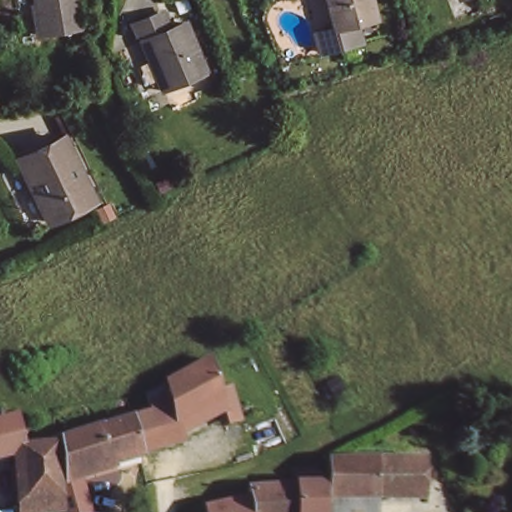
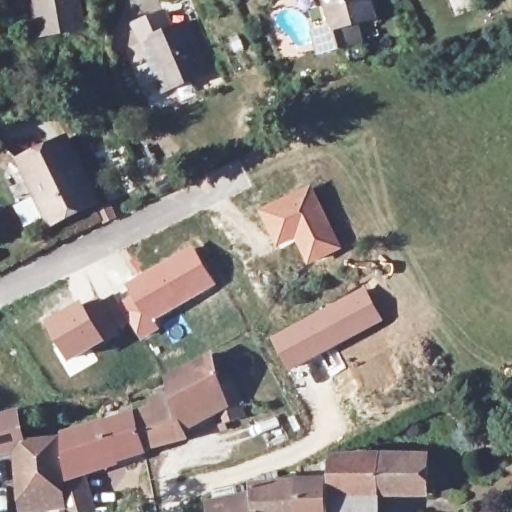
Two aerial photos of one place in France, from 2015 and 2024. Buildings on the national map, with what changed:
unchanged [(87,25),(48,34),(39,0),(81,0),(87,25)]
unchanged [(324,55),(319,37),(334,33),(325,0),(368,0),(373,21),(359,25),(364,42),(324,55)]
unchanged [(128,24),(156,12),(164,28),(180,23),(199,72),(160,88),(146,55),(141,56),(128,24)]
unchanged [(50,221),(24,159),(70,135),(96,197),(50,221)]
new [(312,185),(344,248),(309,265),(296,240),(278,248),(260,210),(312,185)]
new [(130,294),(125,286),(191,241),(217,284),(156,320),(161,328),(141,340),(118,301),(130,294)]
new [(312,316),(364,284),(384,320),(329,350),(289,369),(273,336),(312,316)]
new [(85,301),(90,309),(104,300),(123,329),(70,362),(46,322),(85,301)]
unchanged [(151,419),(148,404),(174,397),(173,384),(208,362),(216,388),(226,385),(233,412),(218,417),(214,405),(176,416),(179,437),(129,454),(121,427),(151,419)]
unchanged [(18,490),(25,488),(11,440),(0,443),(0,409),(15,405),(24,433),(50,438),(51,446),(59,505),(60,512),(21,512),(20,507),(18,490)]
unchanged [(129,454),(130,458),(70,477),(61,444),(121,427),(129,454)]
unchanged [(336,495),(333,476),(331,456),(422,444),(424,480),(373,485),(375,512),(338,512),(338,508),(336,495)]
unchanged [(251,489),(249,481),(269,480),(301,478),(323,477),(325,509),(304,511),(295,512),(204,512),(201,499),(251,489)]

